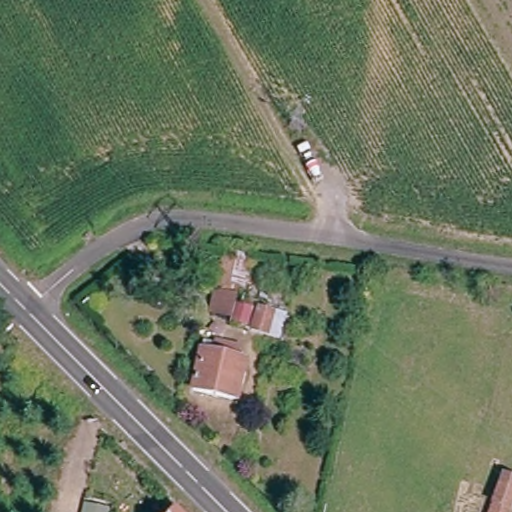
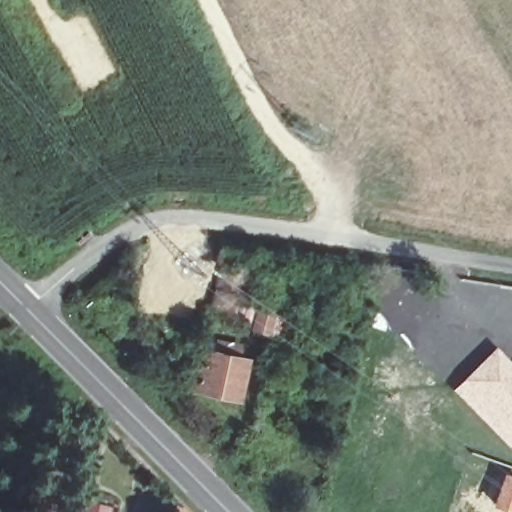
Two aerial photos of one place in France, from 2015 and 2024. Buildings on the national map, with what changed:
unchanged [(218,243),(251,250),(244,287),(237,286),(231,315),(205,314),(218,243)]
unchanged [(250,308),(246,321),(235,318),(239,305),(250,308)]
unchanged [(253,326),(257,306),(283,311),(279,332),(253,326)]
unchanged [(238,348),(235,357),(244,360),(236,396),(194,386),(202,350),(203,350),(205,343),(217,346),(217,344),(238,348)]
new [(512,361),(512,440),(506,446),(450,388),(495,344),(512,361)]
unchanged [(503,470),(512,473),(512,494),(506,512),(489,512),(503,470)]
unchanged [(108,512),(83,512),(85,502),(109,507),(108,512)]

